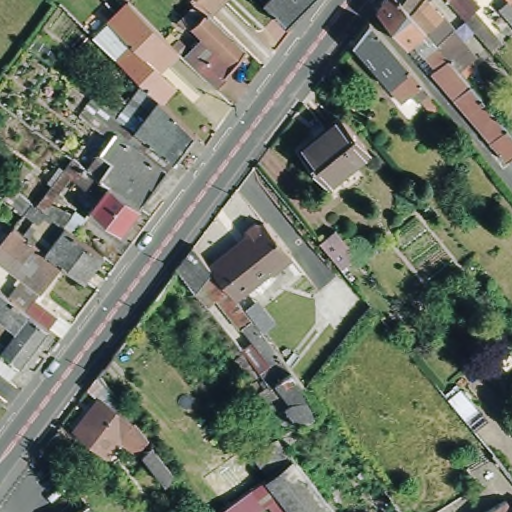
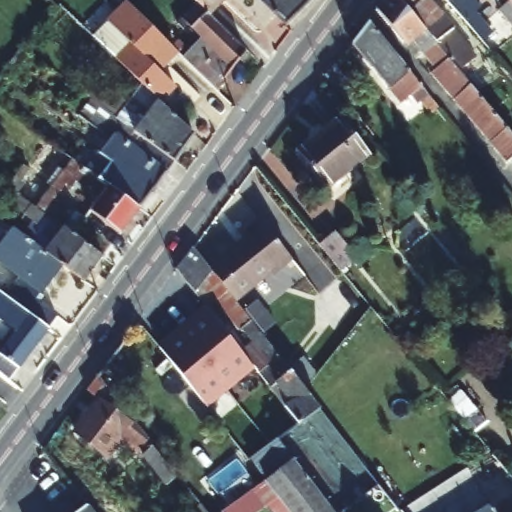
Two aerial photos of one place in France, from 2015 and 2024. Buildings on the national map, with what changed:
unchanged [(210,15),(199,3),(196,0),(224,0),(210,15)]
unchanged [(287,25),(265,4),(269,0),(313,0),(287,25)]
unchanged [(512,165),(495,145),(457,101),(436,76),(440,72),(428,59),(422,64),(409,50),(379,14),(390,0),(429,0),(469,47),(467,50),(477,61),(471,66),(476,73),(467,80),(474,88),(512,134),(512,165)]
unchanged [(485,14),(480,20),(490,30),(480,40),(447,2),(445,0),(473,0),(485,14)]
unchanged [(511,0),(512,0),(512,1),(511,0)]
unchanged [(180,51),(162,71),(177,85),(160,101),(160,100),(118,60),(117,59),(95,39),(109,24),(129,2),(165,37),(180,51)]
unchanged [(501,12),(505,8),(512,2),(512,25),(501,12)]
unchanged [(220,89),(185,55),(193,47),(207,61),(217,51),(184,19),(199,3),(210,15),(247,51),(225,79),(227,80),(220,89)]
unchanged [(372,22),(405,60),(424,84),(410,97),(415,105),(410,109),(355,42),(372,22)]
unchanged [(327,79),(339,65),(359,91),(347,102),(327,79)]
unchanged [(100,110),(112,94),(130,108),(119,124),(100,110)]
unchanged [(102,199),(78,180),(87,167),(90,169),(117,133),(139,150),(147,140),(140,134),(135,131),(129,125),(137,115),(140,116),(147,107),(152,110),(160,100),(160,101),(196,135),(175,161),(168,171),(140,208),(122,234),(93,211),(102,199)]
unchanged [(330,190),(302,156),(344,124),(371,157),(330,190)]
unchanged [(17,331),(0,319),(0,290),(10,298),(25,280),(34,268),(3,245),(15,227),(40,247),(44,242),(50,247),(66,227),(77,213),(87,219),(76,235),(105,256),(85,281),(64,265),(42,292),(38,297),(60,315),(50,328),(11,381),(0,372),(0,351),(2,352),(17,331)]
unchanged [(179,268),(195,245),(210,265),(235,245),(237,247),(248,239),(246,235),(251,233),(251,228),(262,221),(264,222),(267,220),(295,256),(275,272),(274,270),(238,298),(229,287),(219,275),(219,274),(197,291),(179,268)]
unchanged [(342,272),(322,246),(337,234),(359,258),(342,272)]
unchanged [(250,358),(261,350),(219,295),(229,287),(238,298),(280,352),(260,370),(250,358)]
new [(157,345),(205,306),(255,369),(209,407),(157,345)]
unchanged [(307,386),(324,406),(302,423),(264,375),(260,370),(280,352),(307,386)]
unchanged [(139,425),(153,442),(139,453),(122,440),(110,455),(77,430),(102,399),(89,390),(100,375),(134,418),(139,425)]
unchanged [(302,423),(294,430),(284,436),(246,388),(264,375),(302,423)]
unchanged [(437,386),(450,377),(475,407),(462,417),(437,386)]
unchanged [(267,481),(272,476),(255,455),(279,437),(280,440),(295,458),(336,512),(291,512),(280,497),(267,481)]
unchanged [(234,445),(247,448),(245,458),(242,470),(227,467),(232,443),(234,445)]
unchanged [(145,453),(155,445),(179,475),(169,483),(145,453)]
unchanged [(497,458),(507,471),(509,473),(480,488),(470,472),(497,458)]
unchanged [(266,480),(267,481),(280,497),(260,512),(224,512),(224,511),(266,480)]
unchanged [(486,495),(489,498),(499,492),(505,502),(510,500),(512,504),(512,512),(472,512),(467,505),(486,495)]
unchanged [(467,512),(428,512),(452,493),(467,512)]
unchanged [(208,512),(199,512),(205,507),(208,512)]
unchanged [(84,512),(90,508),(93,512),(84,512)]
unchanged [(224,512),(222,512),(224,511),(224,512)]

